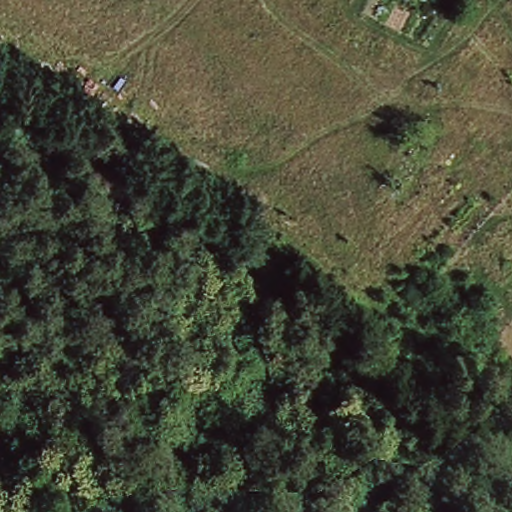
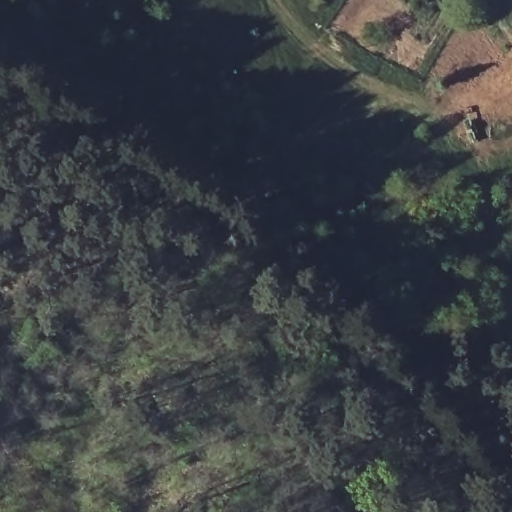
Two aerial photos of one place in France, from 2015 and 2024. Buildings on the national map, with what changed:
[]

